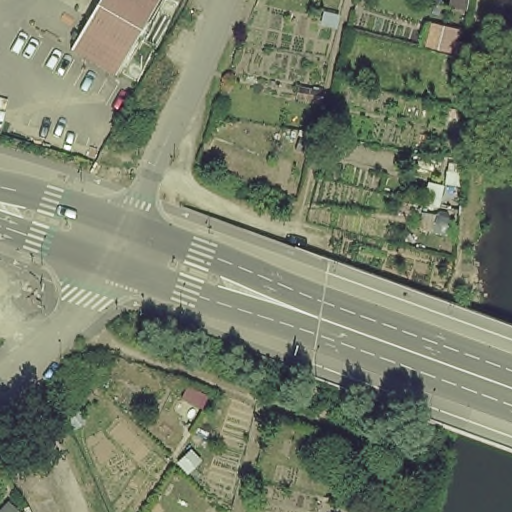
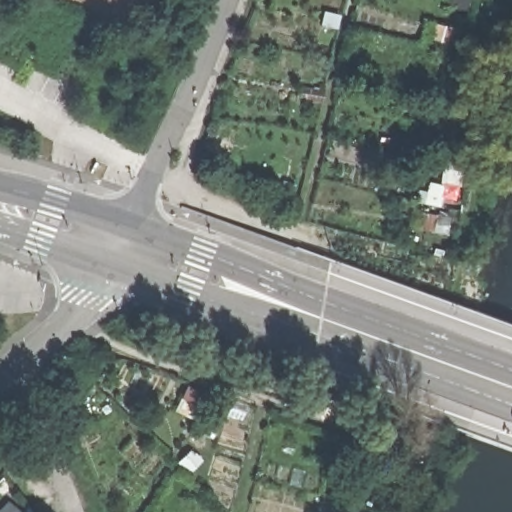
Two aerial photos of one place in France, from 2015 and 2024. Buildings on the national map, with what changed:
demolished [(123,68),(76,46),(97,0),(152,0),(123,68)]
new [(16,512),(0,512),(0,510),(6,503),(16,512)]

